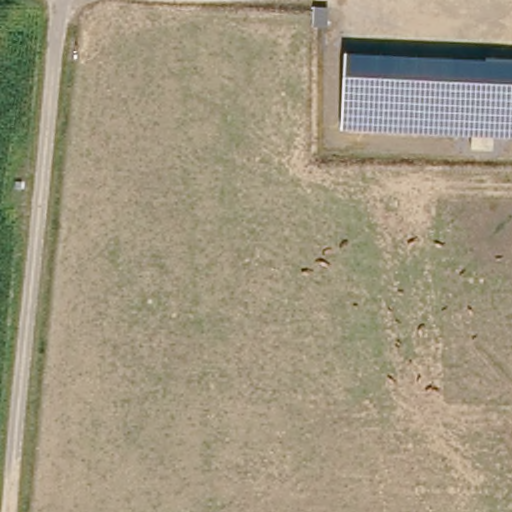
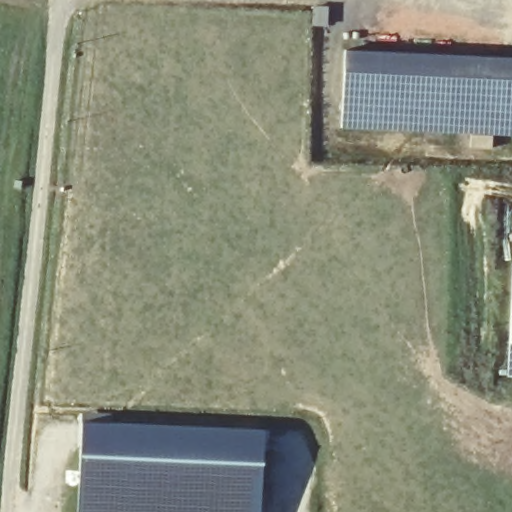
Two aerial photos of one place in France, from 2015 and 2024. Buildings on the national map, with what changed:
unchanged [(512,57),(512,135),(495,134),(493,150),(471,150),(471,134),(342,126),(346,48),(512,57)]
new [(512,372),(507,371),(512,260),(512,372)]
new [(82,418),(267,430),(263,462),(79,452),(82,418)]
new [(263,462),(262,512),(77,512),(79,452),(263,462)]

